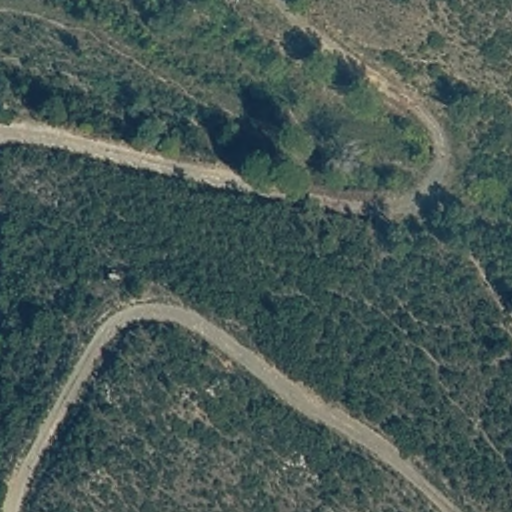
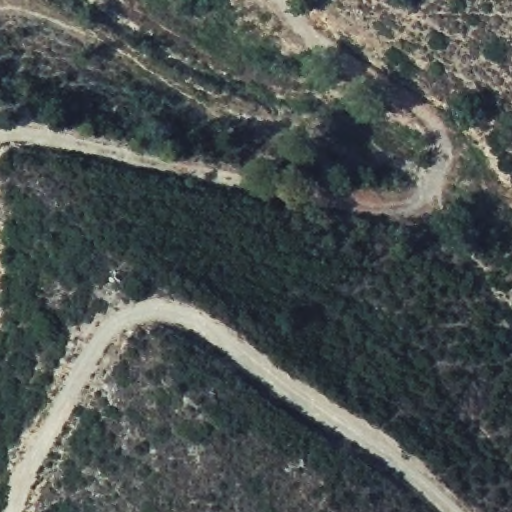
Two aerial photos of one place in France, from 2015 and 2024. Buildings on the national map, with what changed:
[]

